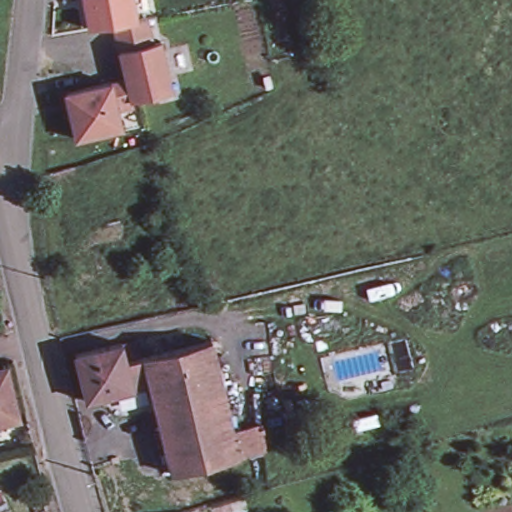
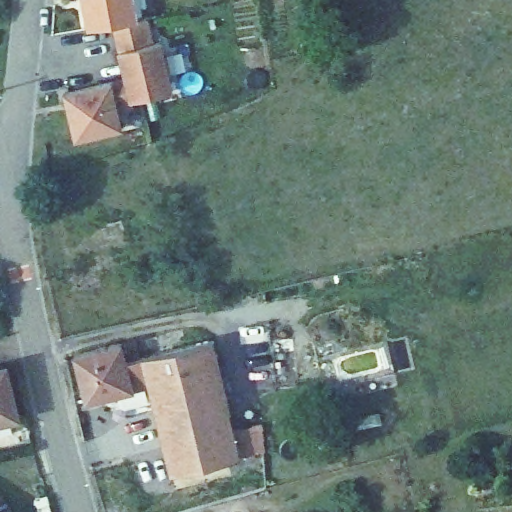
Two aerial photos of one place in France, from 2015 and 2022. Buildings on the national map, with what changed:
unchanged [(85,9),(83,0),(133,0),(133,1),(137,20),(90,29),(85,9)]
unchanged [(77,137),(68,92),(113,81),(127,78),(120,49),(163,41),(173,90),(133,99),(135,105),(119,109),(122,127),(77,137)]
unchanged [(87,398),(78,351),(123,339),(138,335),(142,353),(145,353),(152,383),(87,398)]
unchanged [(162,425),(152,383),(145,353),(212,339),(229,408),(162,425)]
unchanged [(18,421),(0,425),(0,371),(5,370),(18,421)]
unchanged [(172,471),(162,425),(229,408),(240,455),(172,471)]

